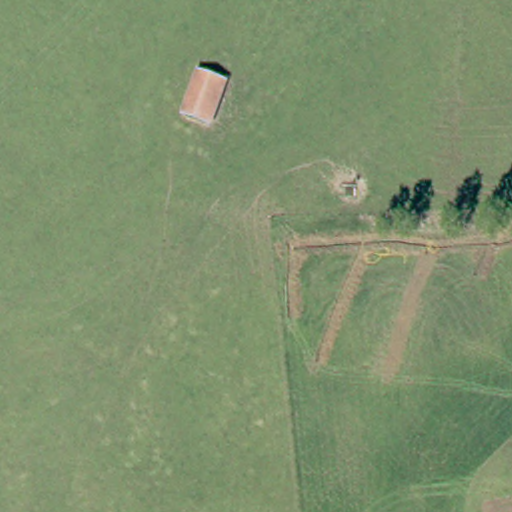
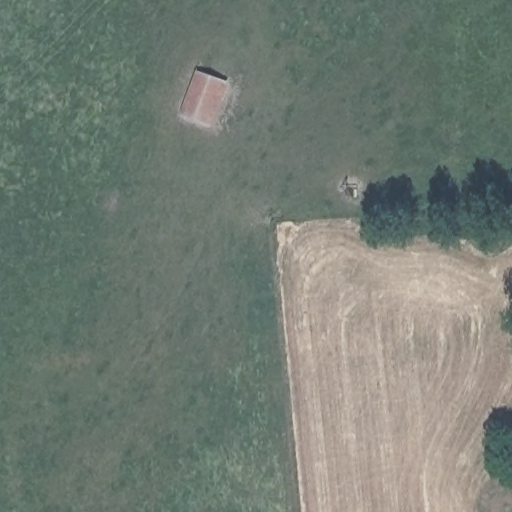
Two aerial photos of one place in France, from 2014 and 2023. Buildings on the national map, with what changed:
unchanged [(209,80),(228,97),(198,127),(181,109),(209,80)]

